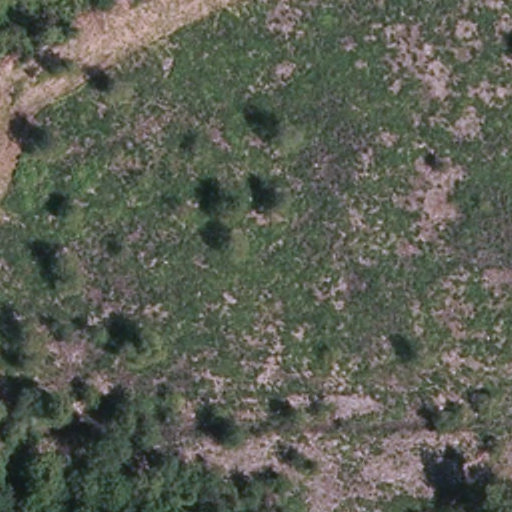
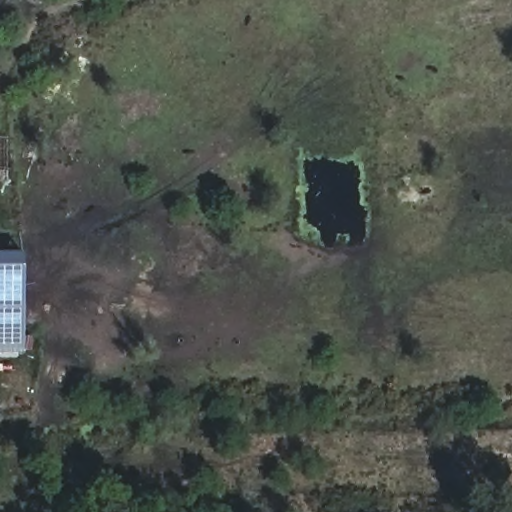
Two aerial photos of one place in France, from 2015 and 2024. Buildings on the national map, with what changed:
new [(27,255),(29,352),(0,352),(0,255),(27,255)]

